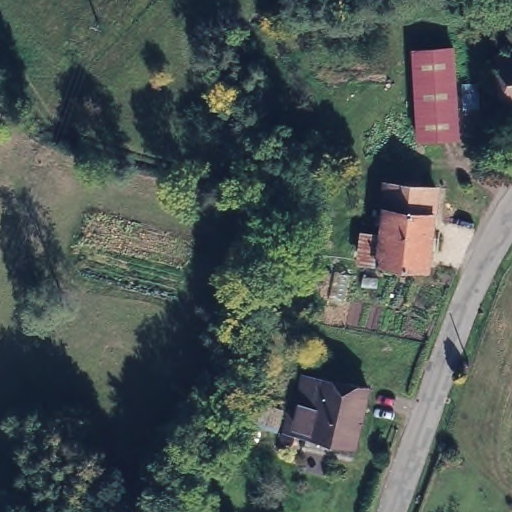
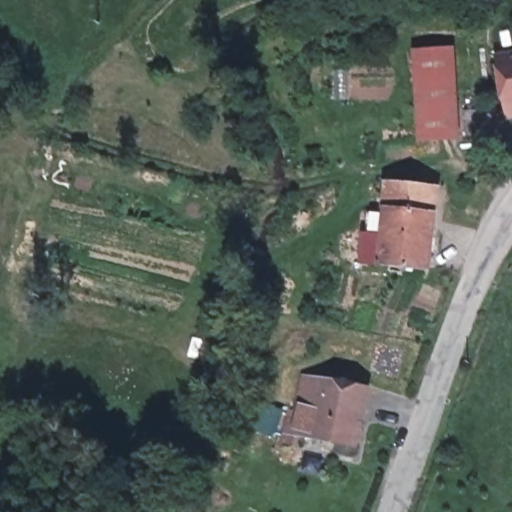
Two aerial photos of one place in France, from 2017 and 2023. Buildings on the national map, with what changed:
unchanged [(460,137),(421,140),(416,50),(455,47),(460,137)]
unchanged [(504,112),(494,56),(512,52),(512,110),(504,112)]
unchanged [(497,108),(497,133),(469,134),(469,109),(497,108)]
unchanged [(434,186),(431,212),(434,212),(429,267),(361,262),(364,236),(381,237),(384,226),(376,225),(377,215),(384,215),(388,184),(434,186)]
unchanged [(371,387),(361,445),(300,433),(297,448),(293,447),(291,455),(283,454),(284,446),(289,446),(296,408),(304,410),(311,376),(371,387)]
unchanged [(287,438),(269,435),(273,414),(291,418),(287,438)]

